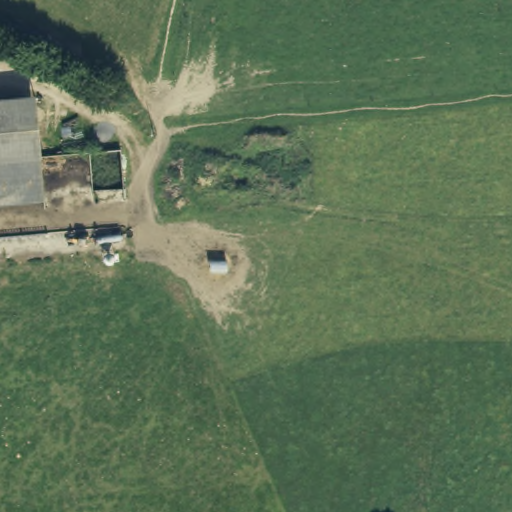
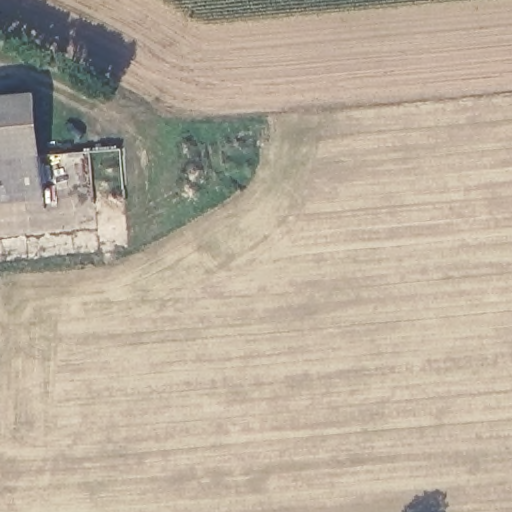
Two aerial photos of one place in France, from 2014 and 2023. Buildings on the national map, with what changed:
unchanged [(0,202),(0,100),(36,97),(45,198),(0,202)]

